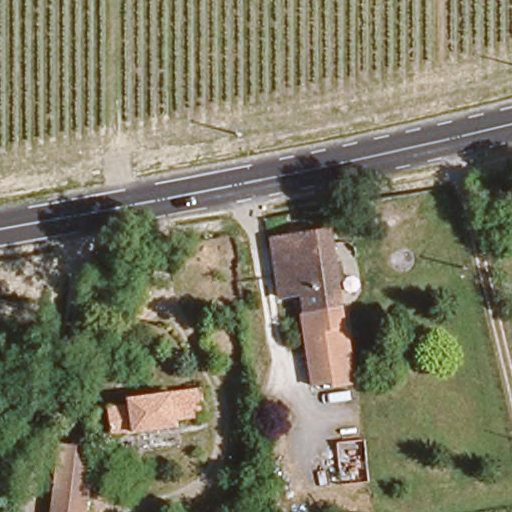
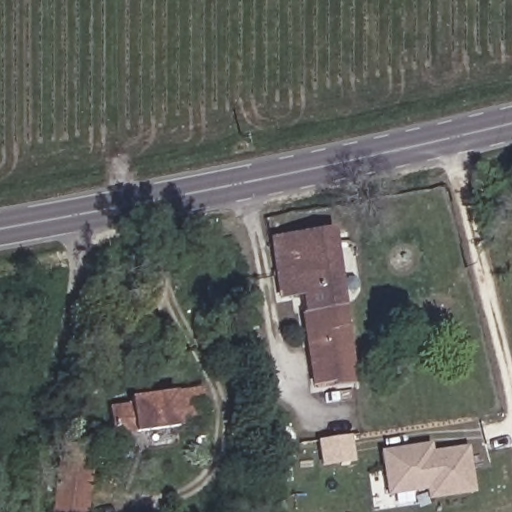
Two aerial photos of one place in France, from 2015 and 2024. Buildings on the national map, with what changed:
unchanged [(336,221),(352,363),(330,367),(331,362),(303,367),(297,283),(279,286),(267,234),(336,221)]
unchanged [(170,415),(170,423),(105,431),(102,404),(126,401),(125,390),(195,381),(199,412),(170,415)]
new [(356,461),(323,465),(321,440),(354,435),(356,461)]
unchanged [(78,512),(42,512),(55,436),(89,438),(78,512)]
new [(474,492),(426,500),(424,490),(385,497),(378,450),(430,443),(431,451),(469,446),(474,492)]
demolished [(356,483),(337,487),(334,457),(354,454),(356,483)]

